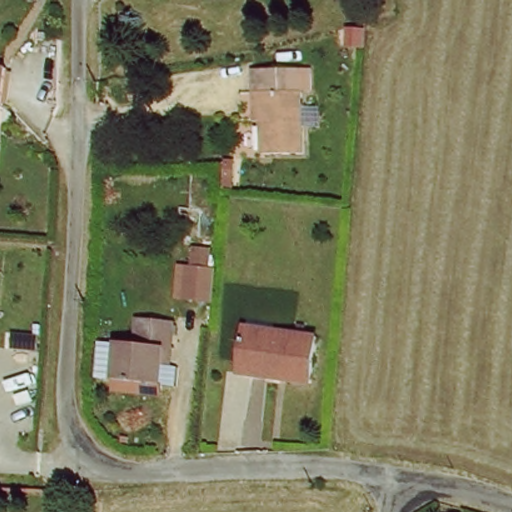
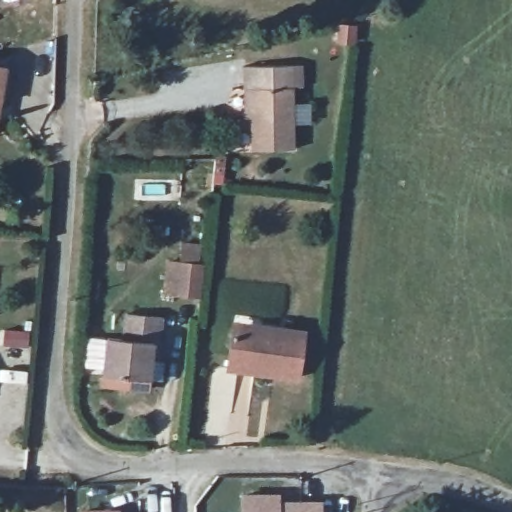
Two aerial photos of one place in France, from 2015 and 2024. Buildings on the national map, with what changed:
unchanged [(0,106),(0,57),(8,59),(0,106)]
unchanged [(292,67),(295,151),(253,155),(251,121),(244,121),(243,94),(242,70),(292,67)]
unchanged [(209,259),(207,291),(180,290),(183,257),(209,259)]
unchanged [(147,360),(145,380),(103,377),(106,338),(121,338),(123,314),(160,316),(160,341),(158,361),(147,360)]
unchanged [(232,374),(237,331),(306,336),(303,379),(232,374)]
new [(281,495),(280,501),(322,501),(322,512),(241,512),(242,495),(281,495)]
new [(82,510),(121,510),(120,512),(82,512),(82,510)]

